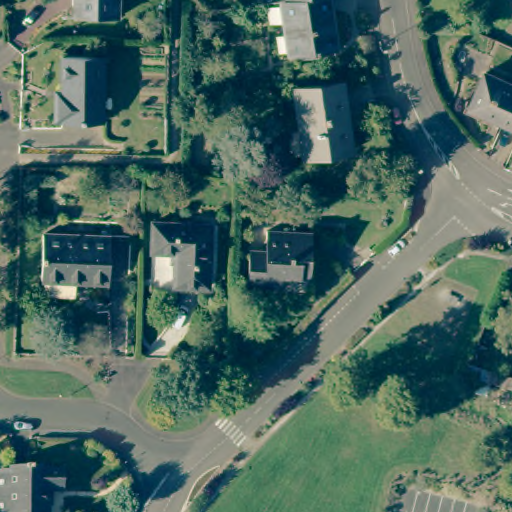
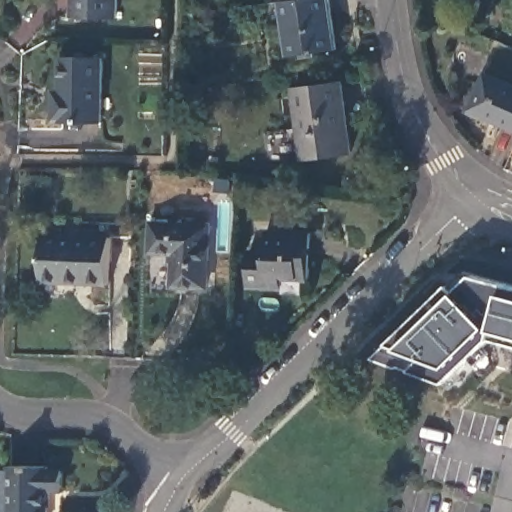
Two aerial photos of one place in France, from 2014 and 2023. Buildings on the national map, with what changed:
unchanged [(74,14),(74,0),(118,0),(118,14),(74,14)]
unchanged [(285,51),(278,0),(328,0),(334,44),(285,51)]
unchanged [(103,117),(54,117),(54,95),(60,95),(60,55),(103,55),(103,117)]
unchanged [(471,109),(487,73),(512,85),(512,128),(471,109)]
unchanged [(344,83),(353,152),(306,159),(296,90),(344,83)]
unchanged [(210,223),(208,285),(174,284),(175,252),(151,251),(153,221),(210,223)]
unchanged [(311,232),(309,277),(281,276),(281,286),(248,285),(249,250),(266,250),(267,231),(311,232)]
unchanged [(110,236),(108,281),(42,279),(44,234),(110,236)]
new [(391,344),(452,284),(464,271),(477,275),(512,285),(512,343),(493,338),(448,382),(413,369),(376,359),(391,344)]
unchanged [(46,465),(60,465),(60,487),(46,487),(45,512),(0,512),(0,465),(6,465),(6,463),(46,463),(46,465)]

